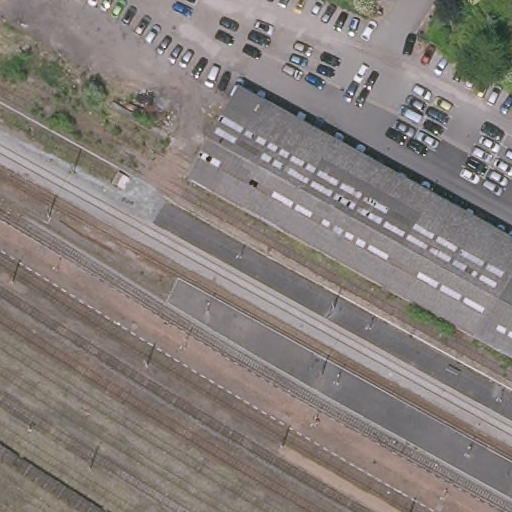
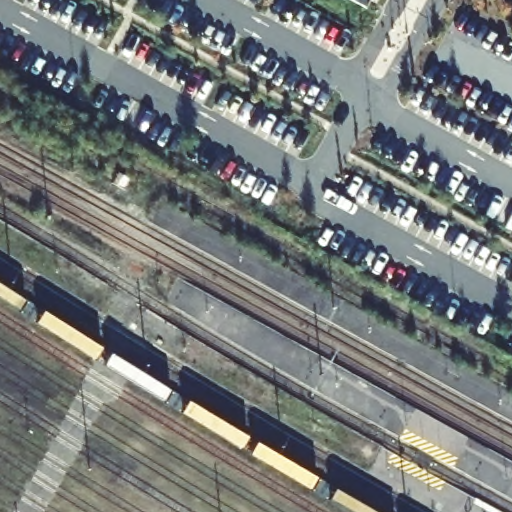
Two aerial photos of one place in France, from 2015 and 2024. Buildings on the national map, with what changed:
demolished [(512,358),(226,207),(268,127),(512,260),(512,358)]

